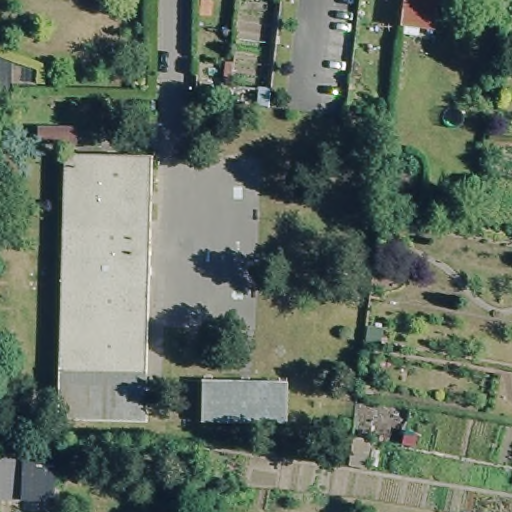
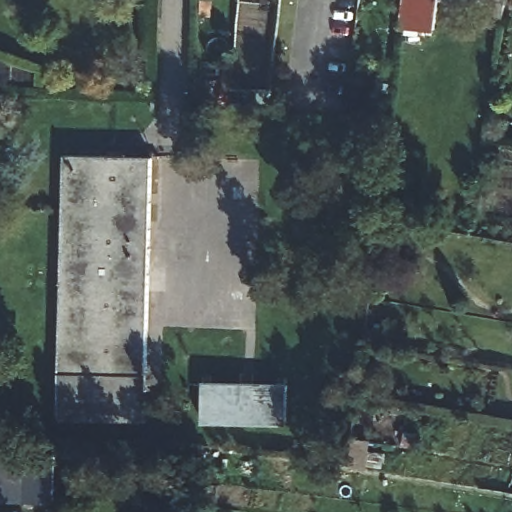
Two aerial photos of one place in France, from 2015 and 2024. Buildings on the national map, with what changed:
unchanged [(401,26),(404,0),(433,0),(432,1),(437,2),(433,31),(401,26)]
unchanged [(485,9),(486,0),(505,0),(504,11),(485,9)]
unchanged [(9,59),(8,88),(0,87),(0,56),(9,59)]
unchanged [(75,130),(75,148),(36,148),(36,129),(75,130)]
unchanged [(62,153),(150,155),(145,372),(57,370),(62,153)]
unchanged [(382,332),(380,347),(364,344),(365,329),(382,332)]
unchanged [(145,372),(144,420),(56,418),(56,370),(57,370),(145,372)]
unchanged [(285,388),(285,428),(200,425),(201,385),(285,388)]
unchanged [(366,470),(351,467),(354,439),(370,442),(366,470)]
unchanged [(55,456),(53,505),(0,503),(0,455),(55,456)]
unchanged [(202,506),(189,505),(189,484),(202,485),(202,506)]

